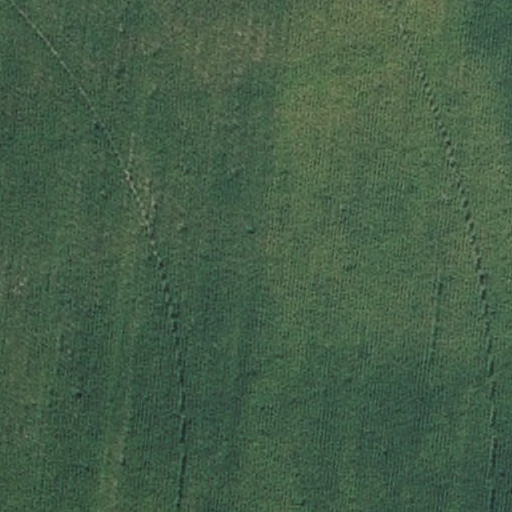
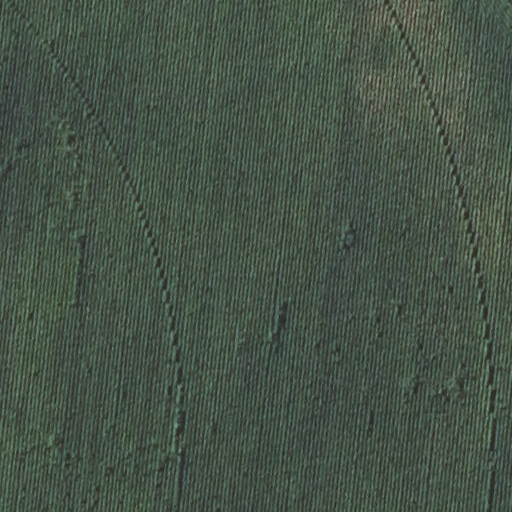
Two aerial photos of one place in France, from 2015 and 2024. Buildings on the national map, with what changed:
[]

